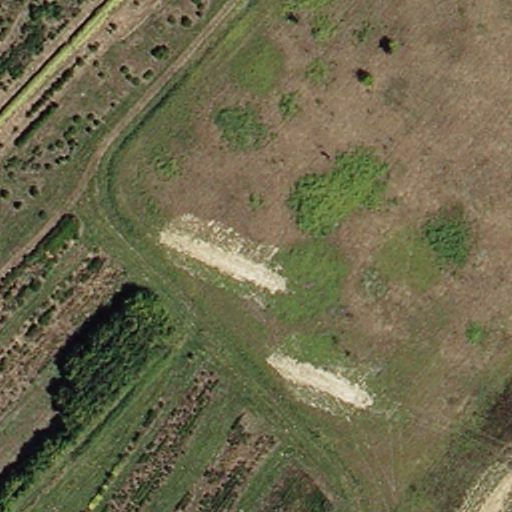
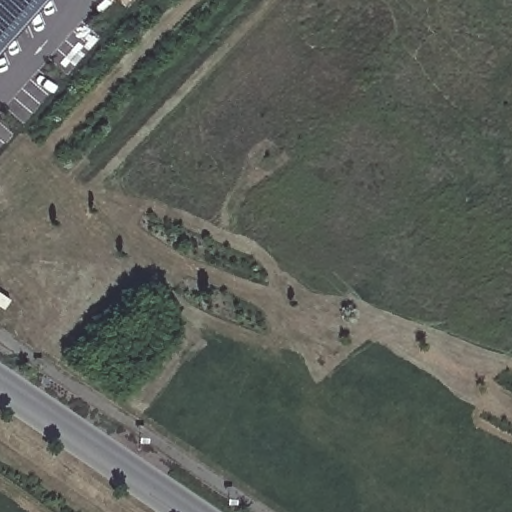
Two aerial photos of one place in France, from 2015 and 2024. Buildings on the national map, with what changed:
new [(0,0),(32,0),(0,38),(0,0)]
new [(49,0),(0,58),(0,38),(32,0),(49,0)]
new [(0,294),(9,300),(2,309),(0,308),(0,294)]

